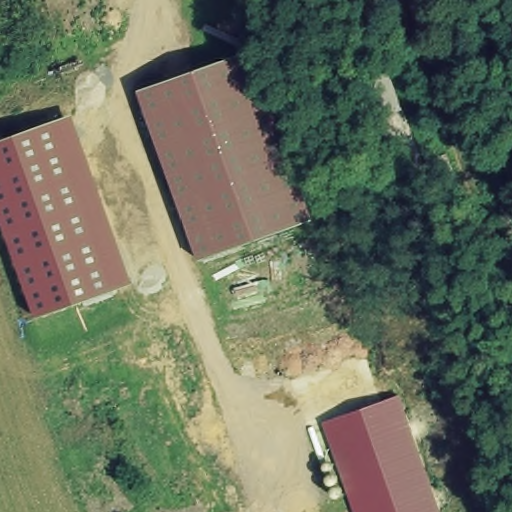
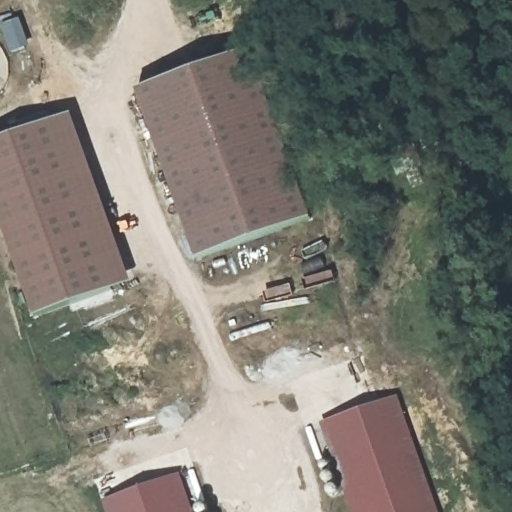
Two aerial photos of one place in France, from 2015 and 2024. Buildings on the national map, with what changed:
unchanged [(451,159),(402,178),(363,65),(410,48),(451,159)]
unchanged [(312,225),(273,239),(215,260),(199,265),(137,93),(150,88),(208,66),(248,52),(312,225)]
unchanged [(0,217),(0,139),(70,114),(132,283),(36,317),(0,217)]
unchanged [(439,512),(353,512),(321,423),(398,396),(439,512)]
new [(102,501),(179,474),(193,512),(106,512),(102,501)]

